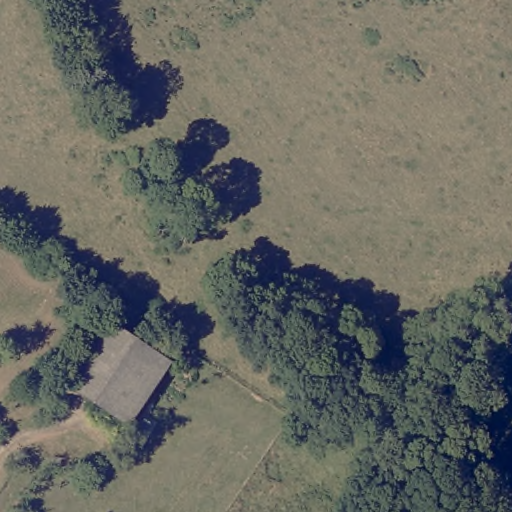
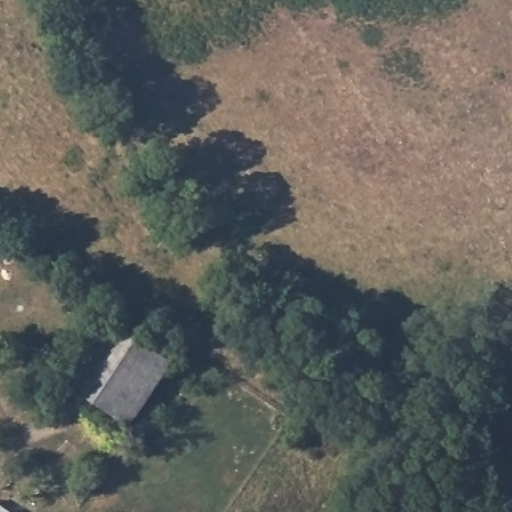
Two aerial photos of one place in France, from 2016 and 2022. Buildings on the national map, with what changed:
unchanged [(60,376),(103,315),(171,362),(130,424),(60,376)]

